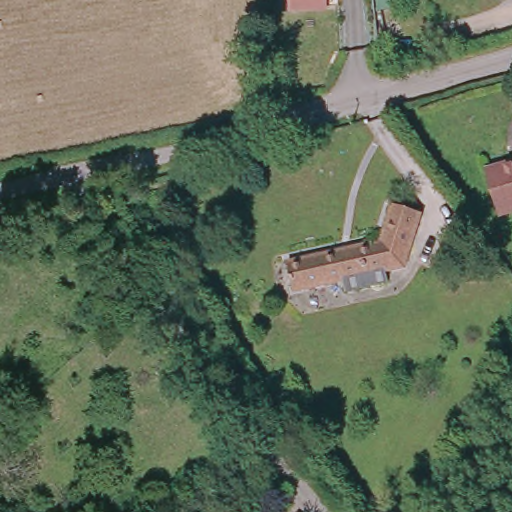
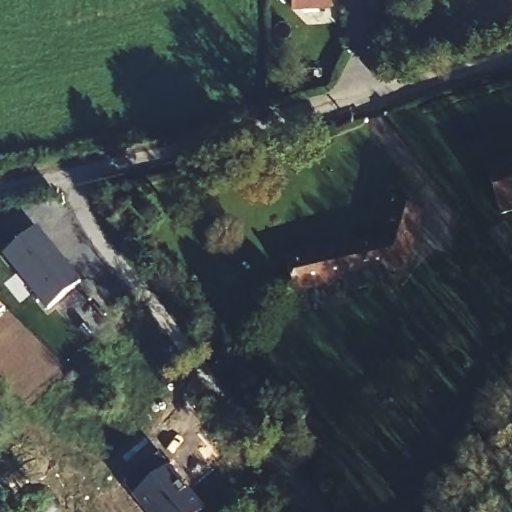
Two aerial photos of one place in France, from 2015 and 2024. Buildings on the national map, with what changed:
new [(327,11),(289,12),(289,0),(327,0),(327,11)]
unchanged [(512,168),(512,212),(507,213),(495,172),(512,168)]
unchanged [(425,211),(409,266),(390,271),(392,282),(352,290),(350,280),(300,290),(295,260),(388,237),(400,201),(425,211)]
new [(82,283),(48,311),(1,258),(37,229),(82,283)]
new [(0,316),(0,306),(5,310),(0,316)]
new [(205,512),(144,512),(121,486),(158,454),(206,511),(205,512)]

